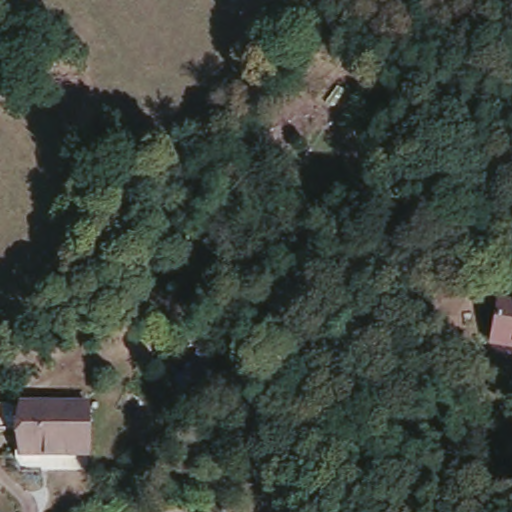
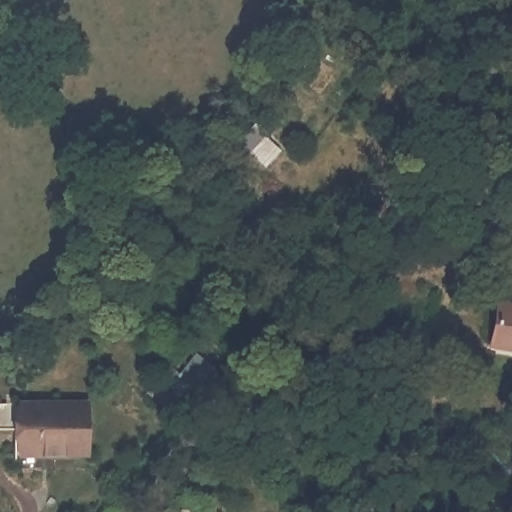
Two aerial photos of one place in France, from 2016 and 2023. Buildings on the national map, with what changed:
unchanged [(502,298),(512,299),(512,343),(499,342),(502,298)]
unchanged [(18,406),(87,410),(86,461),(17,457),(18,406)]

